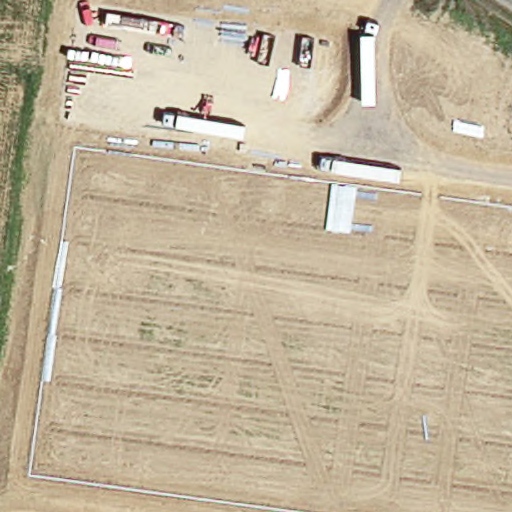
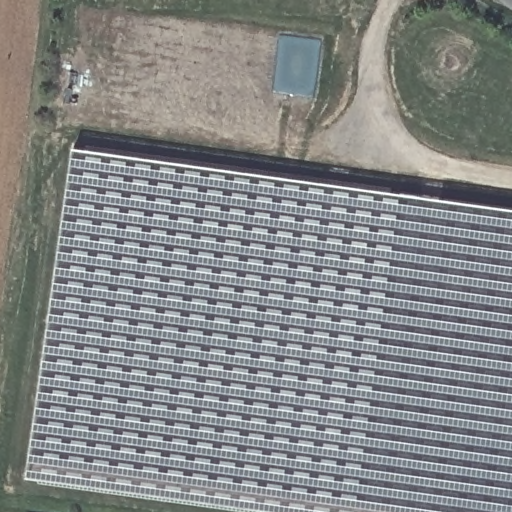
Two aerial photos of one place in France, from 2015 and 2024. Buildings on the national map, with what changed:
new [(73,145),(512,207),(512,512),(304,512),(26,473),(73,145)]

